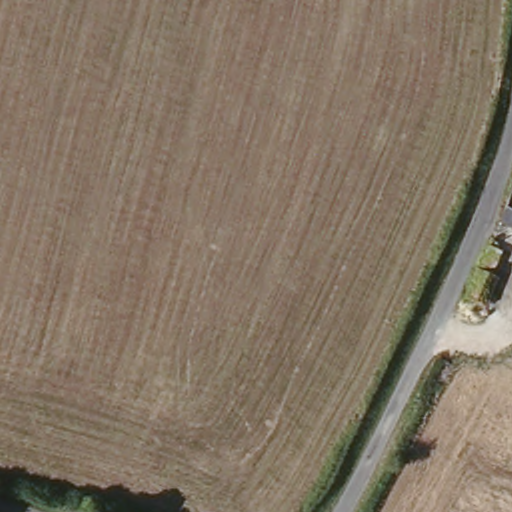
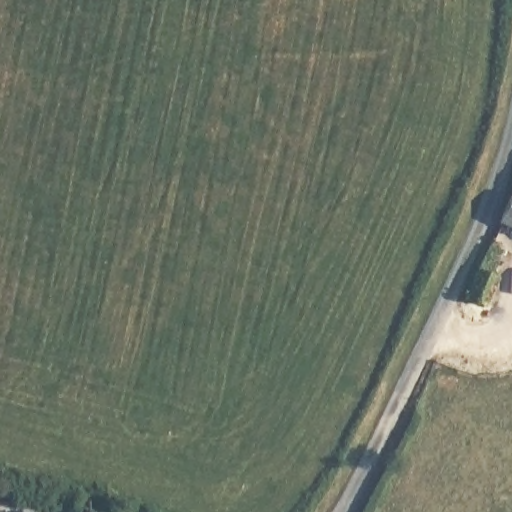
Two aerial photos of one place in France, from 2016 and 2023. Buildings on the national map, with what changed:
unchanged [(512,191),(512,237),(494,228),(512,191)]
unchanged [(484,250),(497,256),(486,279),(494,283),(482,310),(487,313),(485,320),(479,318),(481,311),(461,302),(484,250)]

